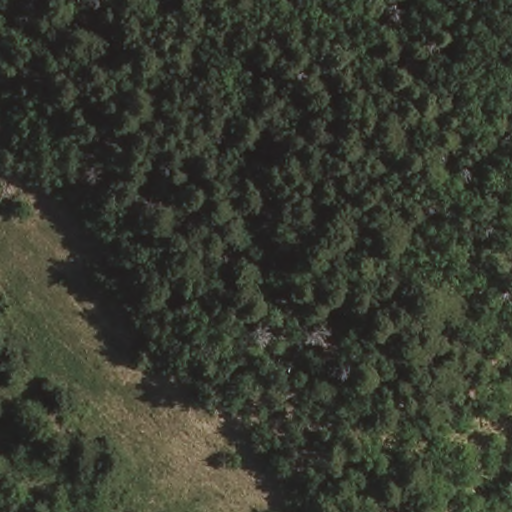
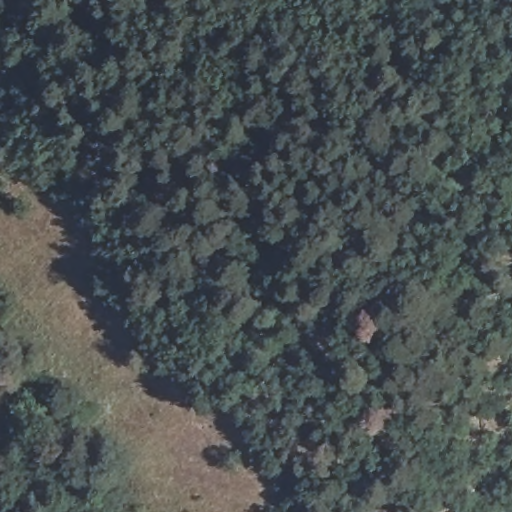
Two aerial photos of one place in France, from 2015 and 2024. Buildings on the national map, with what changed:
[]

